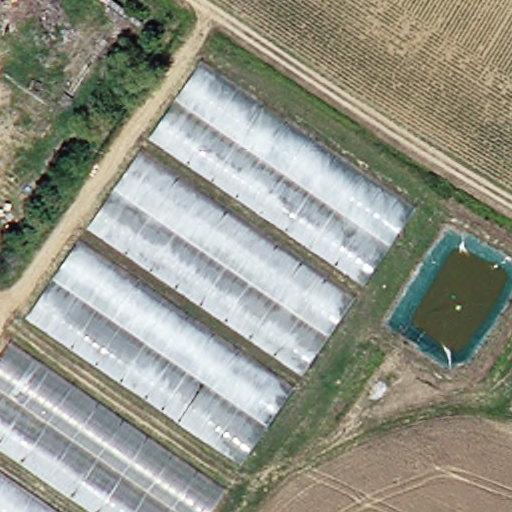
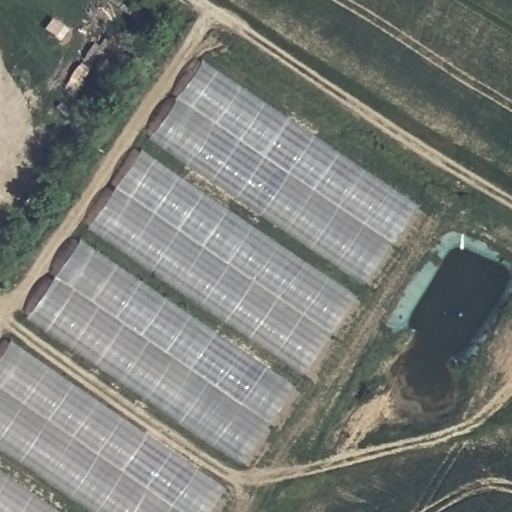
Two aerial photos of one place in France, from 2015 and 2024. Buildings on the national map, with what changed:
unchanged [(139,135),(192,66),(402,210),(359,275),(139,135)]
unchanged [(85,222),(133,155),(344,301),(298,364),(85,222)]
unchanged [(237,457),(21,313),(73,248),(282,388),(237,457)]
unchanged [(0,448),(0,350),(4,345),(213,490),(199,512),(92,512),(0,448)]
unchanged [(0,482),(44,512),(0,512),(0,482)]

